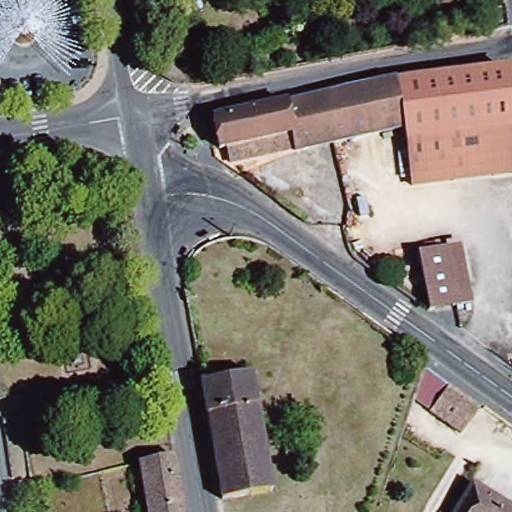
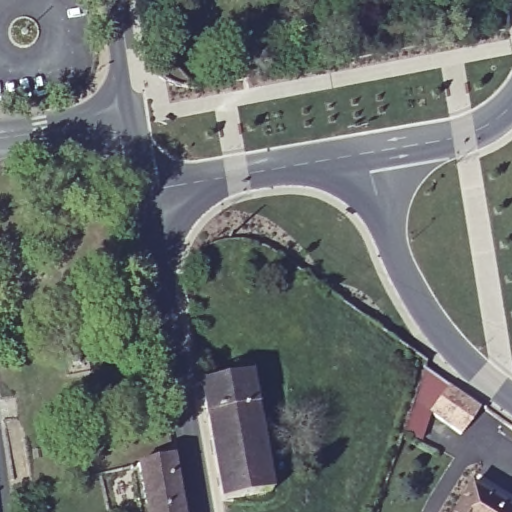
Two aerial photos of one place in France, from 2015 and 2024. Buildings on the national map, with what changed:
demolished [(403,134),(401,122),(390,74),(503,60),(511,120),(403,134)]
demolished [(401,122),(293,146),(289,127),(219,143),(211,111),(390,72),(390,74),(401,122)]
demolished [(437,315),(424,258),(453,251),(466,308),(437,315)]
unchanged [(274,495),(224,503),(203,385),(253,376),(274,495)]
unchanged [(447,387),(478,411),(460,436),(428,414),(447,387)]
unchanged [(135,458),(171,450),(182,512),(145,512),(135,458)]
unchanged [(470,489),(507,512),(456,512),(470,489)]

